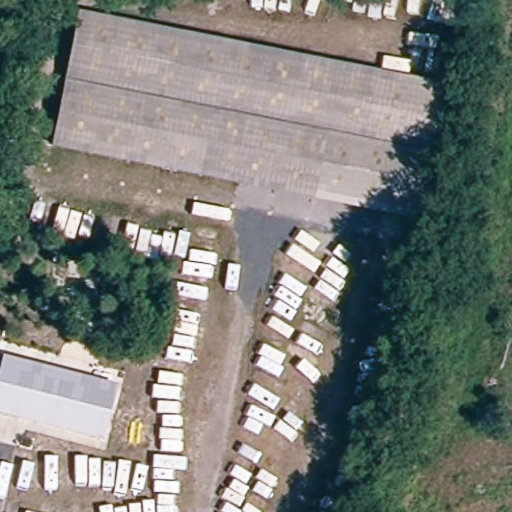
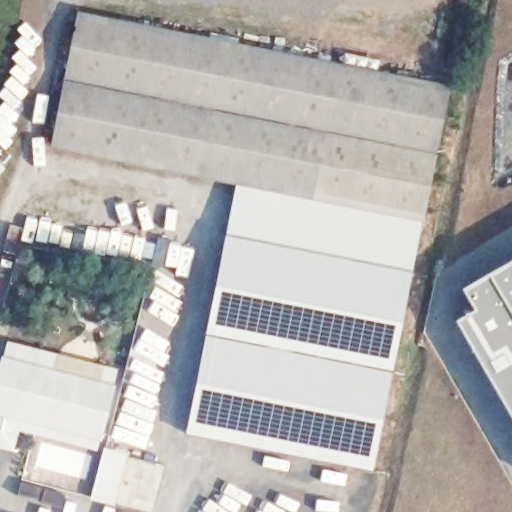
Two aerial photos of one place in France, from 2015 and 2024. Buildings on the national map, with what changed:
unchanged [(424,220),(56,141),(84,9),(452,88),(424,220)]
new [(237,180),(424,220),(413,271),(227,235),(237,180)]
new [(413,271),(373,471),(188,433),(227,235),(413,271)]
new [(459,289),(512,258),(512,424),(498,401),(453,321),(471,310),(459,289)]
unchanged [(114,382),(102,436),(0,414),(0,377),(4,358),(114,382)]
new [(115,506),(92,500),(105,448),(128,453),(115,506)]

